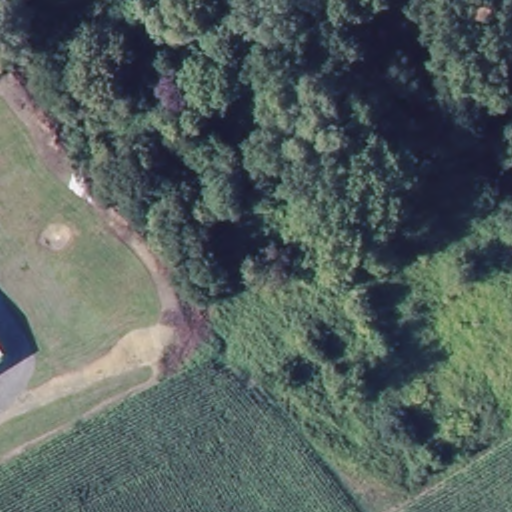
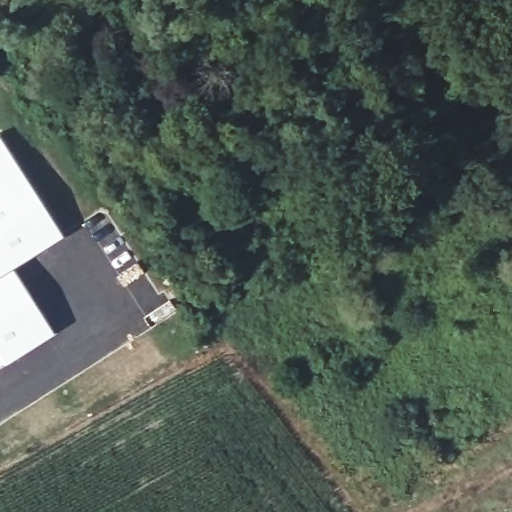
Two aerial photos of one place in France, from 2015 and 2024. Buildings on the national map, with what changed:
new [(11,266),(54,331),(4,363),(0,356),(0,139),(62,234),(11,266)]
unchanged [(0,370),(0,356),(6,366),(0,370)]

